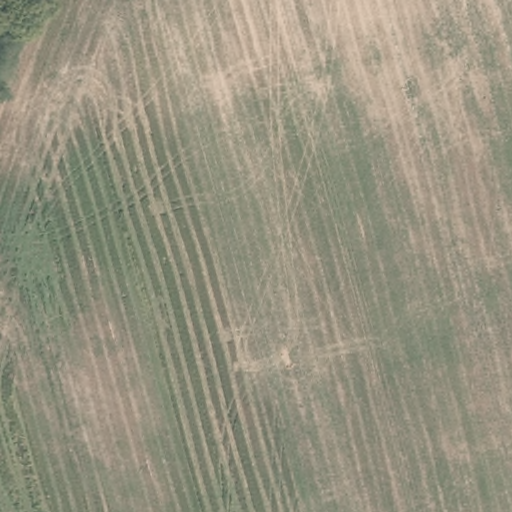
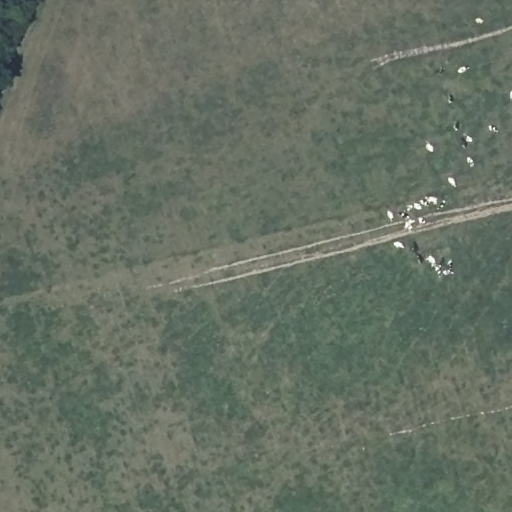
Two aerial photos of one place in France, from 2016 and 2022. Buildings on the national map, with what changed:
[]

